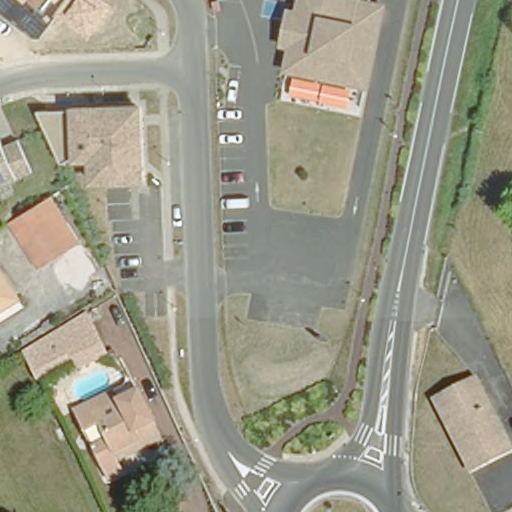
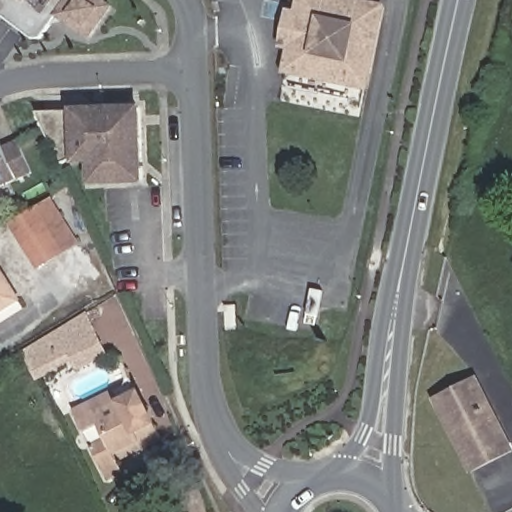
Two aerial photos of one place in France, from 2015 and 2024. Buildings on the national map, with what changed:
unchanged [(89,40),(56,17),(41,38),(32,38),(0,14),(0,0),(106,0),(113,6),(89,40)]
unchanged [(283,74),(299,0),(373,0),(355,87),(283,74)]
unchanged [(144,104),(149,184),(90,185),(89,164),(73,164),(73,157),(60,162),(39,113),(71,112),(71,107),(144,104)]
unchanged [(18,140),(32,174),(16,182),(0,189),(0,144),(1,147),(18,140)]
unchanged [(53,192),(82,250),(37,271),(9,222),(53,192)]
unchanged [(0,301),(0,275),(11,293),(0,301)]
unchanged [(29,347),(50,337),(79,322),(85,333),(95,353),(66,369),(62,360),(41,372),(35,360),(29,347)]
unchanged [(436,398),(470,380),(508,442),(473,462),(436,398)]
unchanged [(145,447),(141,440),(115,453),(119,461),(124,472),(110,480),(77,413),(76,412),(134,383),(161,439),(145,447)]

